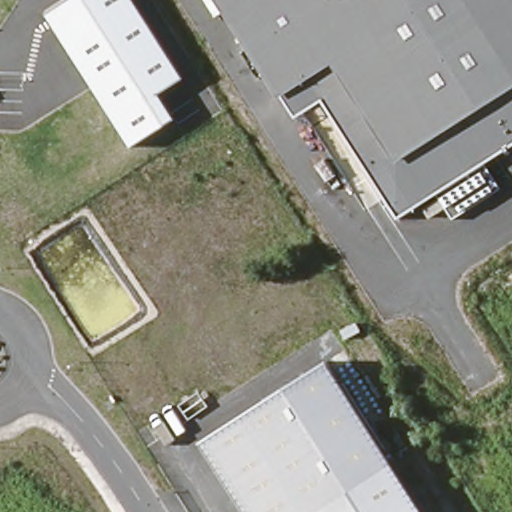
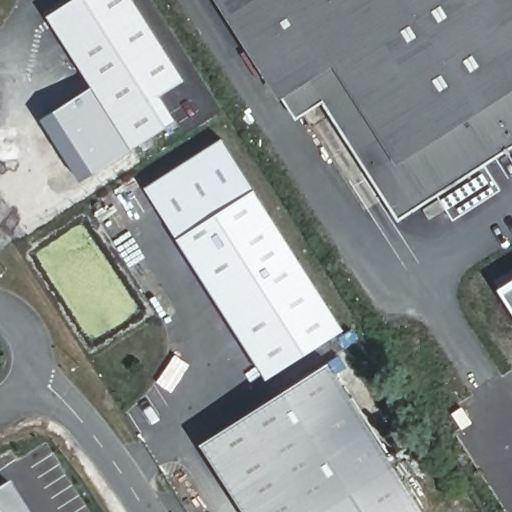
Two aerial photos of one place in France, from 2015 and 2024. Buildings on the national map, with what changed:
unchanged [(160,94),(175,120),(131,149),(46,16),(71,0),(134,0),(183,78),(160,94)]
unchanged [(512,146),(398,220),(324,99),(293,119),(279,99),(215,0),(512,0),(512,146)]
new [(91,86),(131,149),(80,181),(41,119),(91,86)]
new [(221,138),(342,328),(270,379),(144,189),(221,138)]
new [(512,279),(512,310),(497,288),(512,279)]
unchanged [(245,512),(201,443),(328,362),(392,462),(314,512),(245,512)]
unchanged [(314,512),(392,462),(424,512),(314,512)]
new [(29,512),(0,512),(0,495),(13,487),(29,512)]

